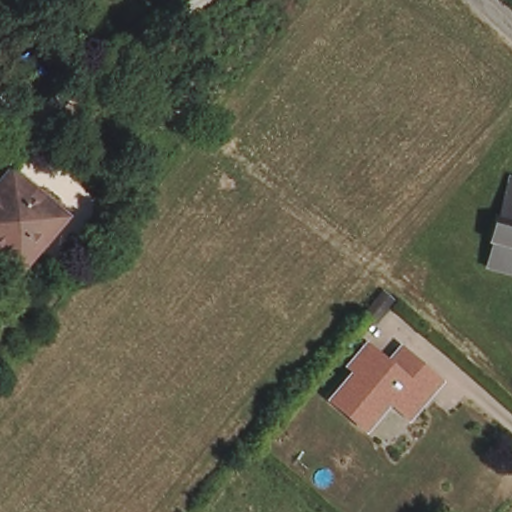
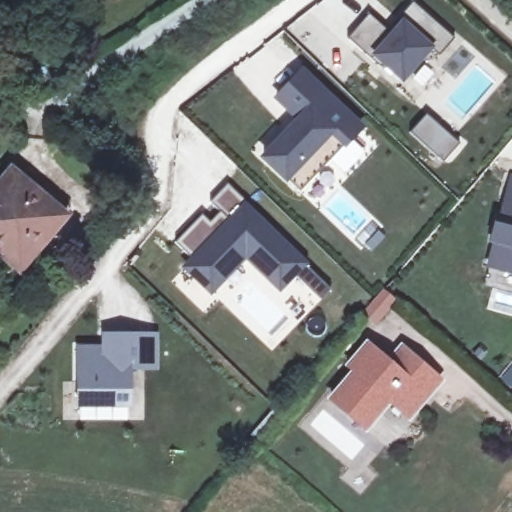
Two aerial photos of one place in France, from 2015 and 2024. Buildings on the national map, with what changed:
new [(370,13),(392,34),(402,22),(398,19),(413,1),(455,39),(440,56),(431,48),(403,80),(384,64),(381,67),(347,38),(370,13)]
new [(366,128),(343,152),(332,139),(287,189),(258,160),(292,117),(271,101),(302,66),(366,128)]
unchanged [(35,191),(65,216),(20,270),(0,253),(0,184),(11,170),(35,191)]
unchanged [(495,242),(508,194),(512,179),(512,271),(500,268),(489,265),(495,242)]
new [(191,260),(176,244),(201,217),(211,228),(223,212),(208,205),(226,184),(310,267),(280,294),(247,262),(212,302),(180,271),(191,260)]
unchanged [(384,290),(395,299),(375,323),(364,313),(384,290)]
new [(105,348),(105,335),(160,335),(162,370),(129,368),(129,405),(79,404),(80,348),(97,348),(105,348)]
unchanged [(366,432),(333,403),(355,378),(356,380),(358,376),(351,370),(367,351),(388,370),(402,354),(408,360),(439,386),(410,420),(390,403),(381,415),(366,432)]

